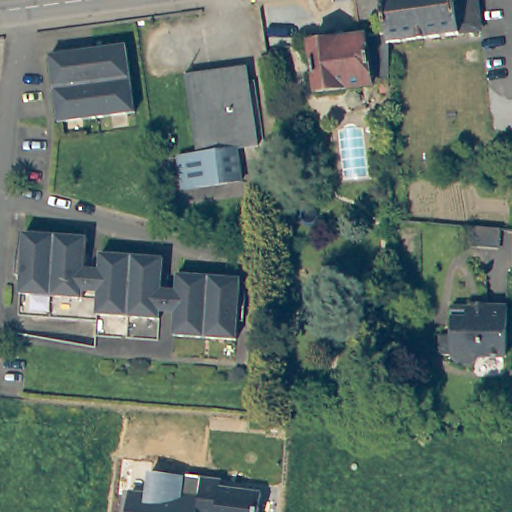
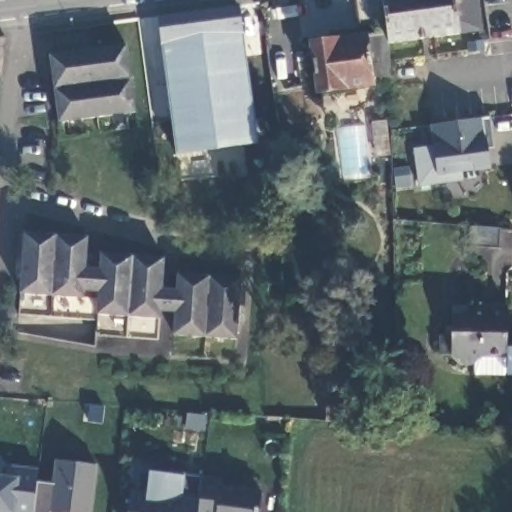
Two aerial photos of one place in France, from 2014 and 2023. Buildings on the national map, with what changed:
unchanged [(339,0),(461,0),(466,32),(374,44),(372,32),(370,24),(343,27),(339,0)]
new [(238,6),(255,136),(177,146),(160,16),(238,6)]
unchanged [(374,84),(305,94),(297,43),(372,32),(374,44),(374,84)]
unchanged [(135,111),(59,121),(50,55),(126,45),(135,111)]
demolished [(262,147),(242,150),(247,182),(188,192),(184,157),(201,155),(191,76),(251,67),(262,147)]
new [(414,148),(433,147),(433,144),(436,144),(432,124),(491,117),(495,147),(489,148),(491,167),(464,172),(465,180),(419,187),(414,148)]
unchanged [(86,237),(86,239),(86,252),(137,257),(163,259),(163,271),(161,291),(161,301),(159,311),(158,318),(95,313),(96,298),(20,293),(20,285),(21,285),(19,283),(20,275),(23,232),(86,237)]
unchanged [(214,278),(239,280),(239,285),(237,317),(237,320),(237,327),(235,327),(234,339),(172,335),(173,322),(171,322),(172,314),(173,313),(174,312),(176,276),(214,278)]
unchanged [(481,302),(481,300),(511,302),(509,353),(485,352),(478,362),(464,361),(456,351),(446,350),(447,330),(452,330),(452,320),(461,320),(461,302),(481,302)]
new [(92,512),(0,512),(0,475),(8,476),(8,465),(39,468),(38,482),(53,483),(55,458),(97,464),(92,512)]
unchanged [(145,492),(148,471),(183,475),(222,478),(221,486),(261,491),(258,512),(125,512),(128,490),(145,492)]

